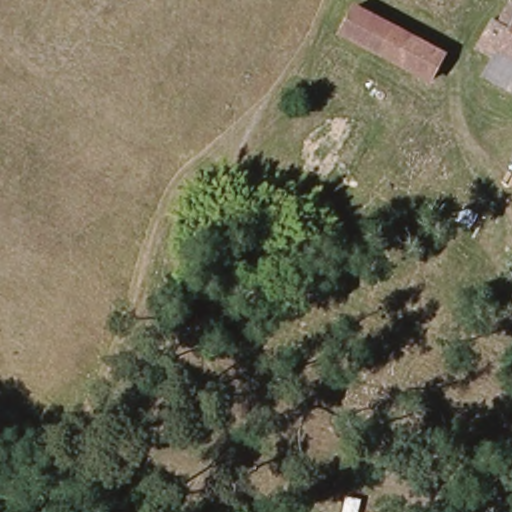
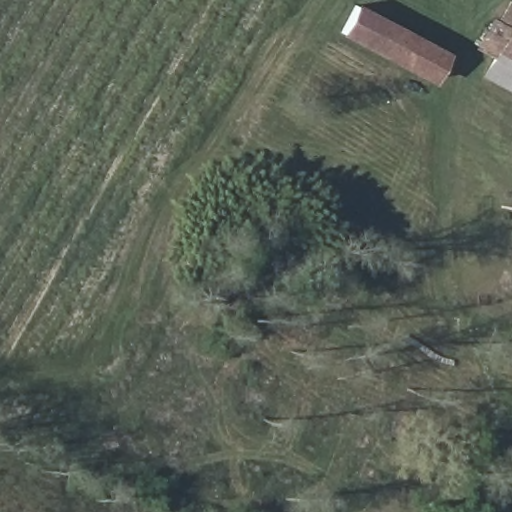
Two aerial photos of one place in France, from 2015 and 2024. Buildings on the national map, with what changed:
unchanged [(347,38),(363,9),(429,45),(452,59),(434,84),(347,38)]
unchanged [(486,80),(509,40),(499,32),(512,12),(512,95),(486,80)]

